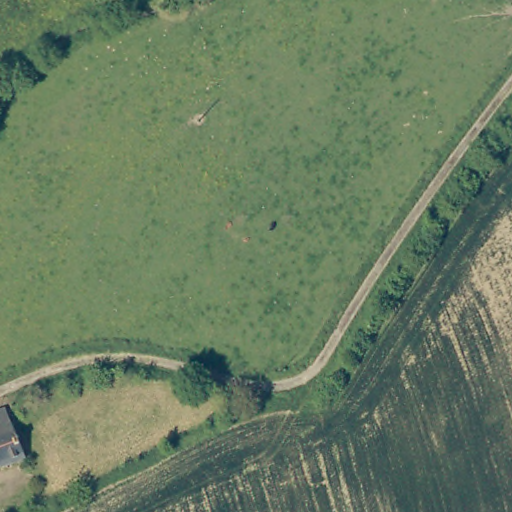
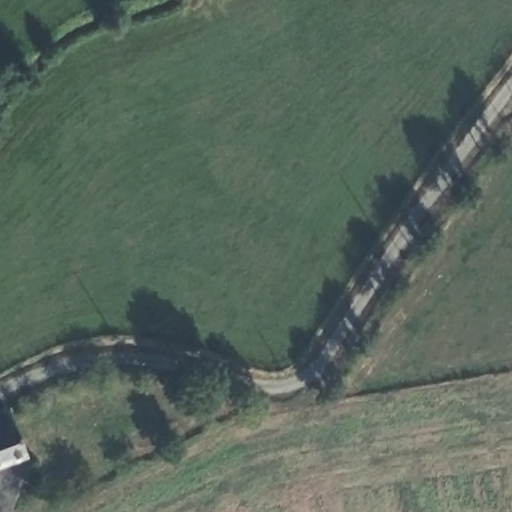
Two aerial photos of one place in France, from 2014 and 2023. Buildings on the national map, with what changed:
unchanged [(0,469),(0,413),(7,410),(22,461),(0,469)]

